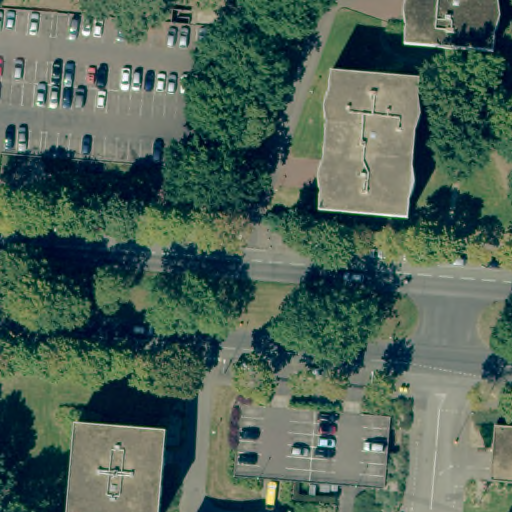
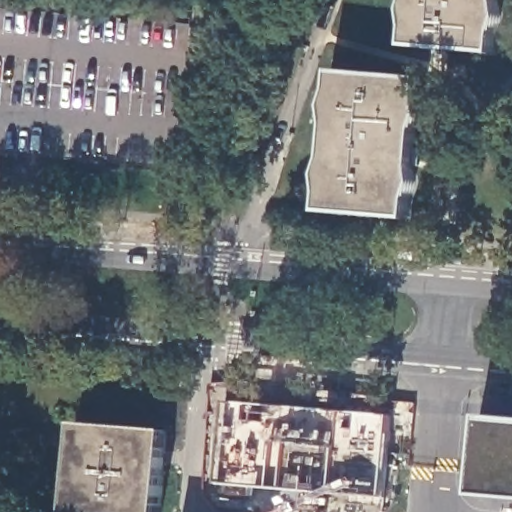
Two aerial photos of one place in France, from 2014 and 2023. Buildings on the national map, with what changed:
unchanged [(403,39),(401,3),(401,0),(500,0),(502,14),(493,46),(403,39)]
unchanged [(317,199),(315,162),(323,129),(321,95),(330,62),(417,70),(420,108),(413,138),(415,176),(407,208),(317,199)]
unchanged [(76,414),(168,422),(161,512),(124,512),(69,507),(76,414)]
demolished [(496,420),(512,421),(512,477),(490,475),(496,420)]
new [(471,422),(512,426),(512,497),(466,496),(471,422)]

